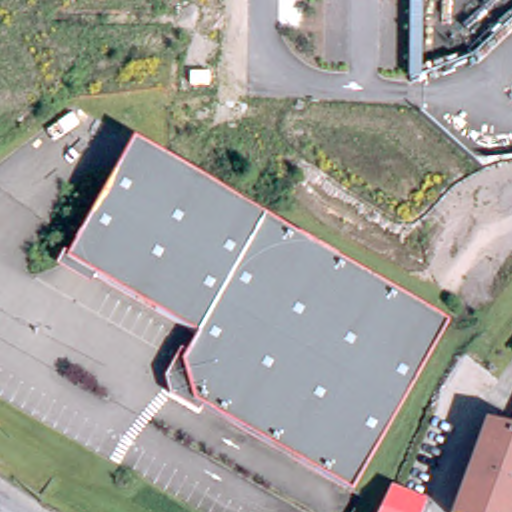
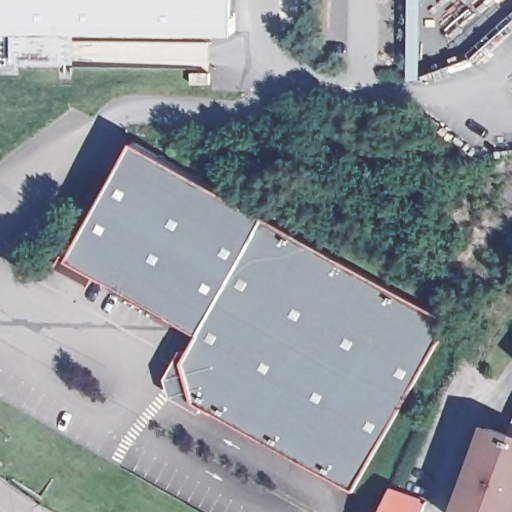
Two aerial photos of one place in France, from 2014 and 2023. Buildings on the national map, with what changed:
new [(12,64),(12,34),(0,33),(0,0),(232,0),(232,36),(75,35),(75,65),(12,64)]
new [(410,81),(410,0),(421,0),(421,81),(410,81)]
unchanged [(200,400),(190,361),(205,335),(178,320),(161,310),(91,270),(73,260),(75,257),(140,141),(142,142),(454,320),(357,489),(200,400)]
unchanged [(512,436),(507,434),(509,426),(512,419),(512,436)]
unchanged [(487,428),(507,434),(512,436),(512,512),(456,512),(487,428)]
unchanged [(393,485),(427,500),(423,512),(381,512),(393,485)]

